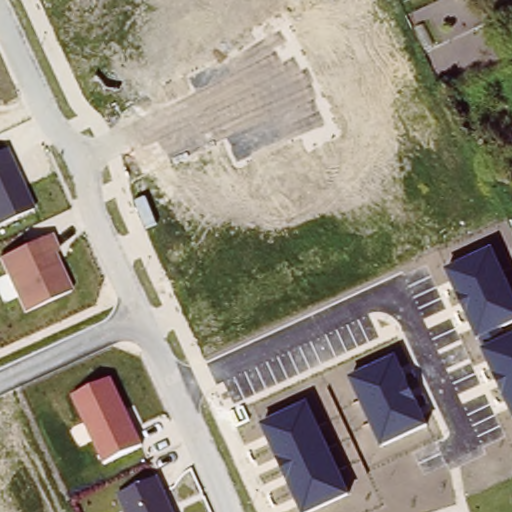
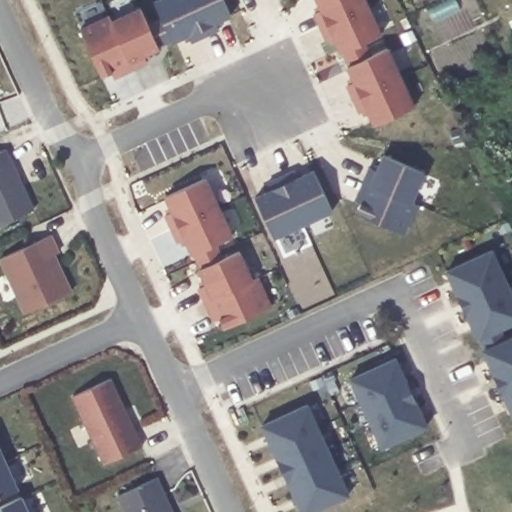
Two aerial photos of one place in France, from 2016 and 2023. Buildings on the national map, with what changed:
new [(139,6),(147,22),(161,17),(153,0),(224,0),(230,13),(214,21),(218,28),(191,40),(187,33),(172,40),(171,39),(158,45),(159,47),(143,54),(146,60),(119,73),(117,67),(101,75),(79,27),(109,14),(111,19),(139,6)]
new [(349,64),(342,50),(341,51),(334,36),(326,39),(314,12),(321,9),(317,0),(365,0),(381,32),(364,40),(371,54),(387,47),(414,105),(374,123),(366,107),(359,111),(347,84),(354,80),(347,65),(349,64)]
unchanged [(35,205),(0,223),(0,150),(6,147),(35,205)]
new [(363,196),(358,193),(369,166),(376,169),(383,153),(424,171),(411,200),(416,202),(404,232),(356,211),(363,196)]
new [(270,189),(267,182),(295,169),(298,176),(313,169),(332,209),(274,236),(255,196),(270,189)]
new [(199,267),(201,267),(194,252),(192,252),(185,237),(178,241),(165,213),(172,210),(165,195),(205,176),(232,234),(216,242),(223,257),(239,249),(252,277),(257,276),(271,305),(224,327),(217,311),(211,313),(199,287),(206,283),(199,267)]
unchanged [(72,288),(26,311),(0,258),(51,236),(72,288)]
unchanged [(512,292),(512,323),(500,330),(505,339),(512,336),(512,412),(447,270),(493,249),(512,292)]
unchanged [(396,357),(429,427),(383,447),(350,378),(396,357)]
unchanged [(112,379),(143,446),(105,463),(74,397),(112,379)]
unchanged [(315,512),(302,512),(262,425),(308,402),(349,495),(315,512)]
new [(18,487),(0,495),(0,448),(18,487)]
unchanged [(174,512),(126,512),(118,495),(159,476),(174,512)]
new [(23,497),(29,512),(0,512),(0,506),(23,497)]

